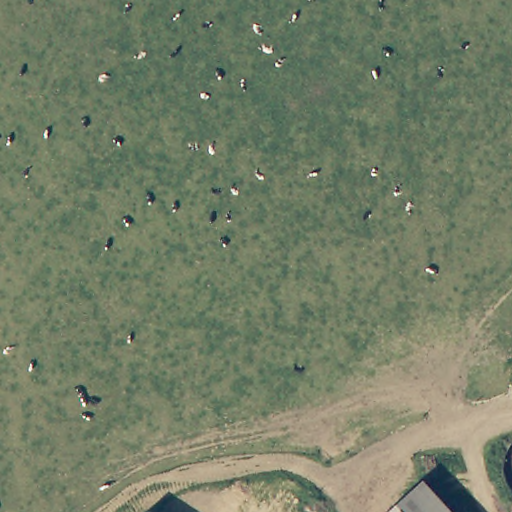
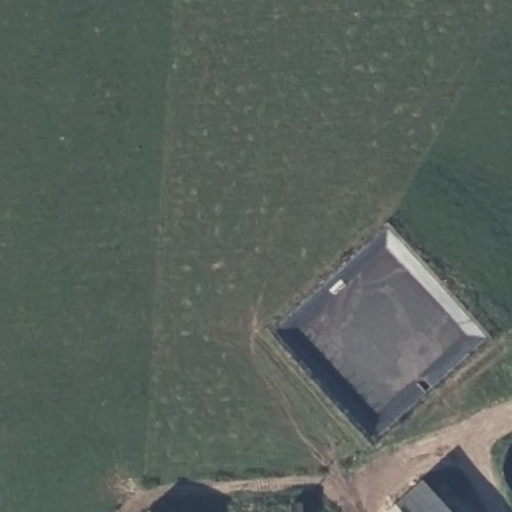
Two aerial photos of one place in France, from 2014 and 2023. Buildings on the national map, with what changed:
unchanged [(458,512),(386,512),(424,477),(458,512)]

